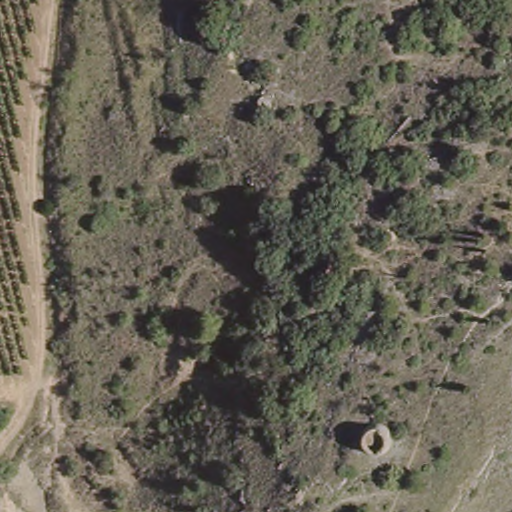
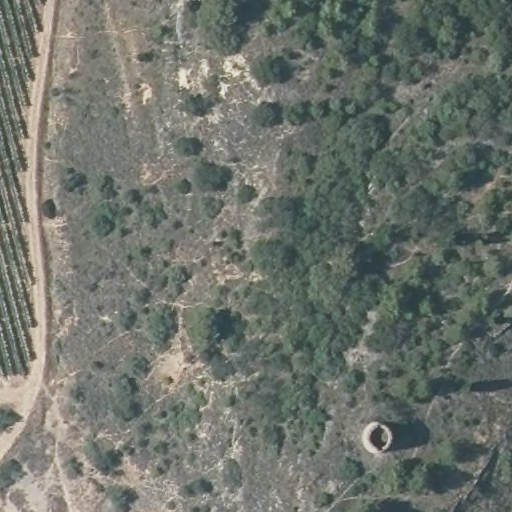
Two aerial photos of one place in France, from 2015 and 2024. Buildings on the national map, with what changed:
unchanged [(388,432),(382,449),(372,450),(367,436),(379,426),(388,432)]

